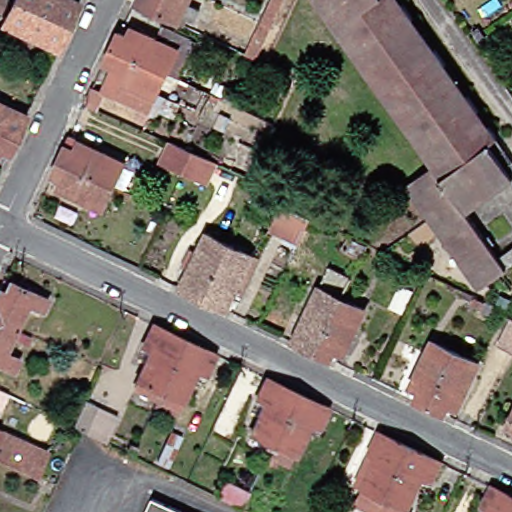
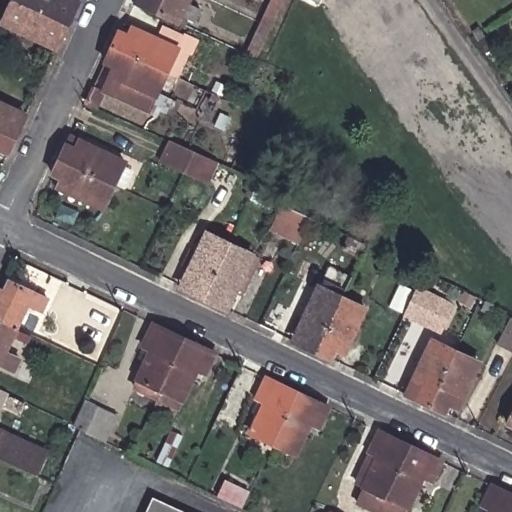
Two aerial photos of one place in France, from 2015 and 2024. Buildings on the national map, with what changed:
unchanged [(15,0),(69,0),(71,1),(67,9),(77,12),(70,29),(14,2),(15,0)]
unchanged [(186,5),(197,11),(192,25),(179,17),(176,24),(131,2),(132,0),(188,0),(186,5)]
unchanged [(251,37),(258,22),(269,0),(268,0),(281,0),(268,26),(254,56),(242,50),(248,36),(251,37)]
demolished [(430,171),(306,5),(313,0),(377,0),(378,0),(390,0),(496,141),(487,147),(512,180),(512,183),(465,219),(499,261),(512,251),(512,269),(485,289),(409,187),(430,171)]
unchanged [(70,29),(62,43),(54,39),(50,46),(2,25),(14,2),(70,29)]
unchanged [(117,32),(127,37),(131,30),(160,44),(156,52),(175,62),(168,75),(109,48),(117,32)]
unchanged [(82,104),(102,63),(109,48),(168,75),(160,90),(157,89),(145,115),(100,92),(92,109),(82,104)]
unchanged [(9,124),(18,128),(11,144),(0,139),(0,109),(12,115),(9,124)]
unchanged [(5,157),(0,155),(0,139),(11,144),(5,157)]
unchanged [(201,187),(177,176),(155,165),(165,144),(188,155),(211,166),(201,187)]
unchanged [(58,149),(69,153),(72,145),(120,167),(117,174),(129,179),(120,197),(109,191),(50,165),(58,149)]
unchanged [(98,215),(50,192),(53,185),(43,180),(50,165),(109,191),(98,215)]
unchanged [(270,233),(280,212),(308,225),(297,247),(270,233)]
unchanged [(186,299),(190,290),(175,282),(184,263),(192,267),(205,240),(227,250),(201,306),(186,299)]
unchanged [(344,249),(347,243),(362,251),(360,256),(344,249)]
unchanged [(250,261),(222,317),(201,306),(227,250),(250,261)]
unchanged [(299,345),(304,335),(296,332),(329,266),(350,276),(340,297),(314,352),(299,345)]
unchanged [(397,312),(386,306),(397,284),(410,290),(397,312)]
unchanged [(0,295),(2,296),(7,287),(44,303),(39,315),(26,310),(15,334),(0,327),(0,295)]
unchanged [(340,352),(332,349),(327,359),(314,352),(340,297),(362,307),(340,352)]
unchanged [(16,363),(11,375),(0,370),(0,327),(15,334),(4,358),(16,363)]
unchanged [(130,392),(149,354),(140,349),(151,327),(181,341),(152,402),(130,392)]
unchanged [(512,335),(512,351),(505,365),(487,356),(501,330),(512,335)]
unchanged [(411,398),(416,389),(408,385),(430,340),(452,350),(426,406),(411,398)]
unchanged [(181,341),(212,356),(201,379),(192,375),(174,412),(152,402),(181,341)]
unchanged [(476,361),(454,407),(447,405),(442,414),(427,407),(426,406),(452,350),(476,361)]
unchanged [(247,442),(262,413),(252,408),(264,385),(294,400),(269,452),(247,442)]
unchanged [(294,400),(326,415),(315,438),(307,434),(292,463),(269,452),(294,400)]
unchanged [(111,417),(100,442),(83,434),(76,430),(86,405),(111,417)]
unchanged [(503,428),(512,410),(512,433),(503,428)]
unchanged [(42,477),(0,459),(0,431),(52,454),(42,477)]
unchanged [(365,512),(354,506),(361,491),(353,487),(366,458),(377,435),(408,450),(379,512),(365,512)]
unchanged [(511,439),(512,436),(512,440),(511,439)]
unchanged [(437,464),(426,487),(417,483),(404,512),(379,512),(408,450),(437,464)]
unchanged [(222,495),(229,481),(252,491),(245,506),(222,495)]
unchanged [(172,512),(113,512),(124,490),(172,512)]
unchanged [(512,500),(512,512),(480,512),(491,490),(512,500)]

